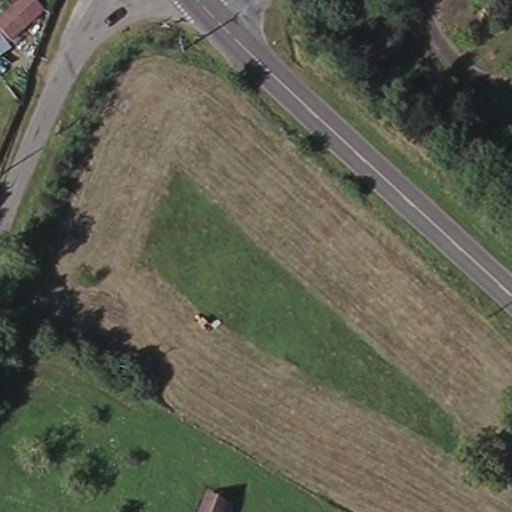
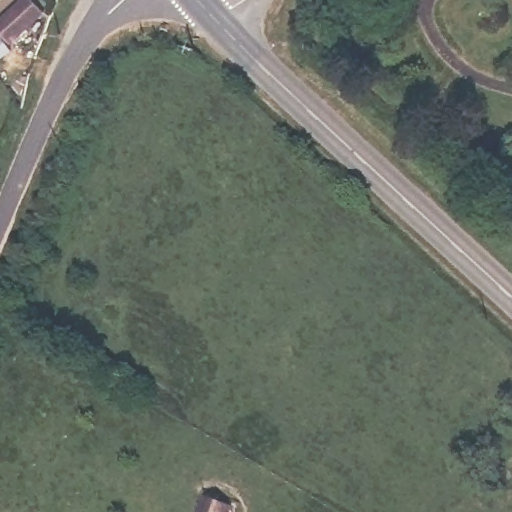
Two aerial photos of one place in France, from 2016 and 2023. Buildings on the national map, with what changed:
unchanged [(38,0),(50,17),(0,61),(0,18),(27,0),(38,0)]
unchanged [(201,498),(225,504),(223,512),(197,512),(201,498)]

